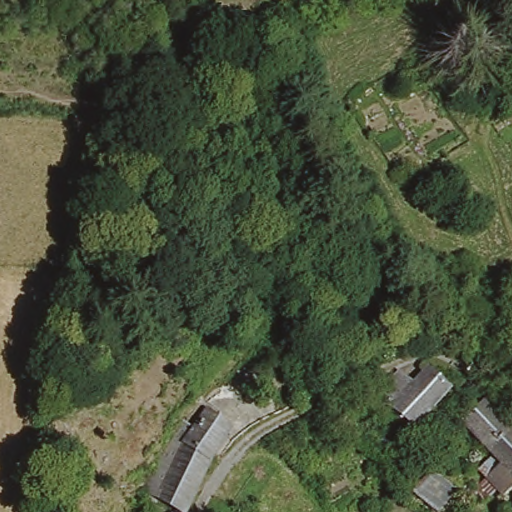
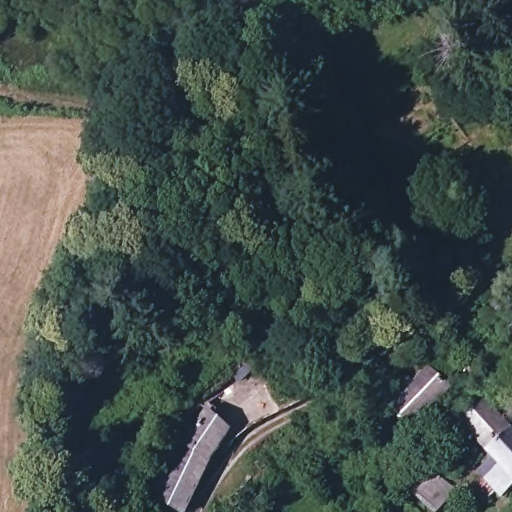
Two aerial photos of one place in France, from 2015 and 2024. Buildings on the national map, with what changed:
unchanged [(418,425),(404,414),(392,403),(381,391),(399,368),(412,376),(435,401),(418,425)]
unchanged [(501,500),(484,482),(498,469),(460,427),(457,423),(482,403),(512,435),(512,489),(501,500)]
unchanged [(183,510),(179,508),(154,494),(177,448),(193,426),(204,409),(226,427),(223,433),(221,437),(218,442),(216,446),(214,450),(183,510)]
unchanged [(177,448),(154,494),(141,490),(164,443),(182,419),(193,426),(177,448)]

